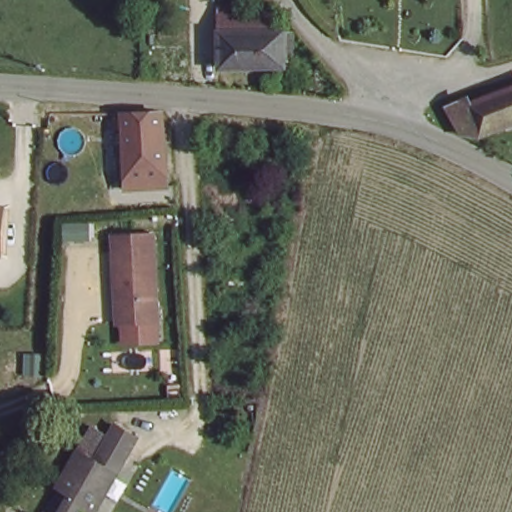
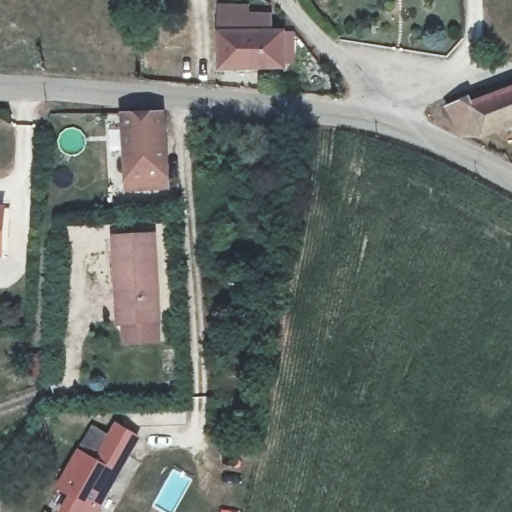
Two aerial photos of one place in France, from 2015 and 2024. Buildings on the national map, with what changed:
unchanged [(270,29),(285,29),(285,66),(218,63),(220,15),(269,16),(270,29)]
unchanged [(450,106),(473,97),(475,103),(512,90),(512,125),(485,135),(465,133),(450,106)]
unchanged [(170,187),(131,188),(128,112),(167,111),(170,187)]
unchanged [(160,323),(125,325),(123,289),(118,290),(114,238),(154,236),(160,323)]
unchanged [(102,420),(118,424),(76,492),(63,484),(102,420)]
unchanged [(118,424),(144,440),(99,512),(63,512),(76,492),(118,424)]

